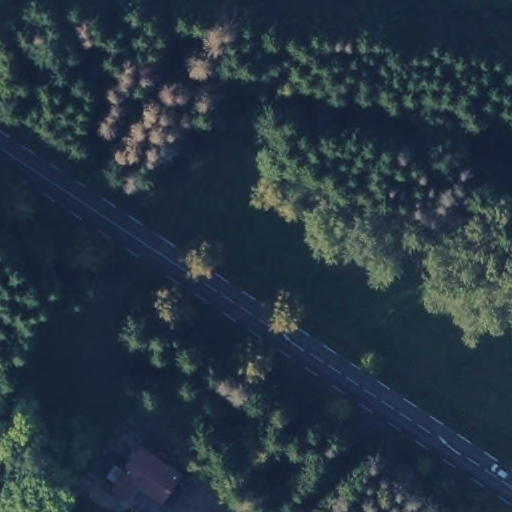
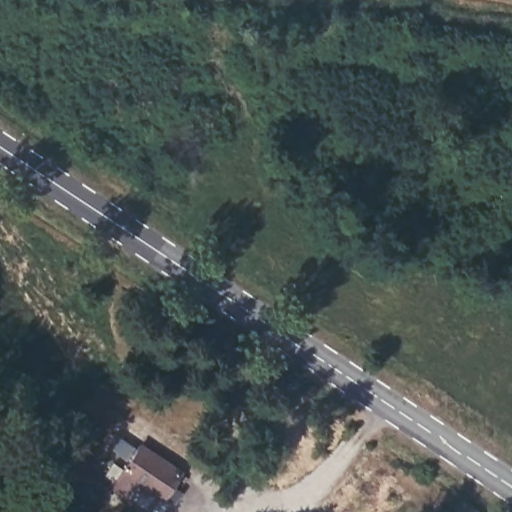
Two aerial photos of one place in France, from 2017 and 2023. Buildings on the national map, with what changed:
unchanged [(182,471),(161,499),(135,481),(123,494),(111,485),(141,446),(182,471)]

